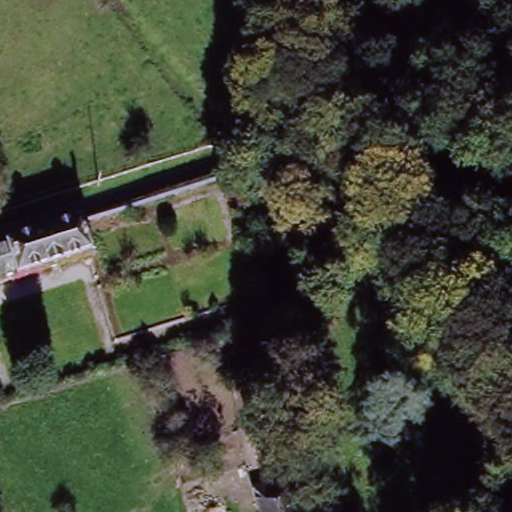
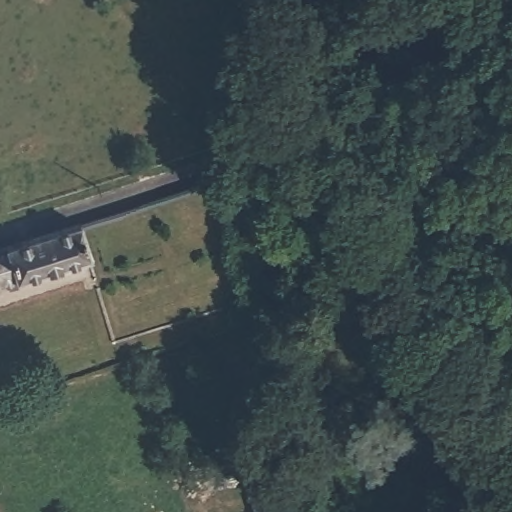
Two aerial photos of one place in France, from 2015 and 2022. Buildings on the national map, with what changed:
unchanged [(0,283),(0,259),(76,232),(83,254),(0,283)]
unchanged [(253,355),(268,352),(276,390),(261,392),(253,355)]
unchanged [(290,475),(301,512),(262,512),(255,485),(290,475)]

